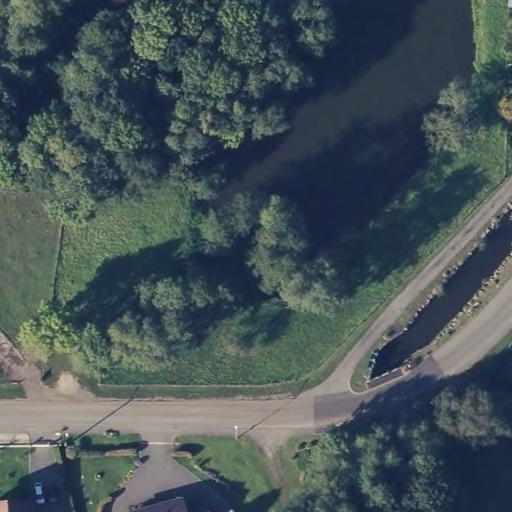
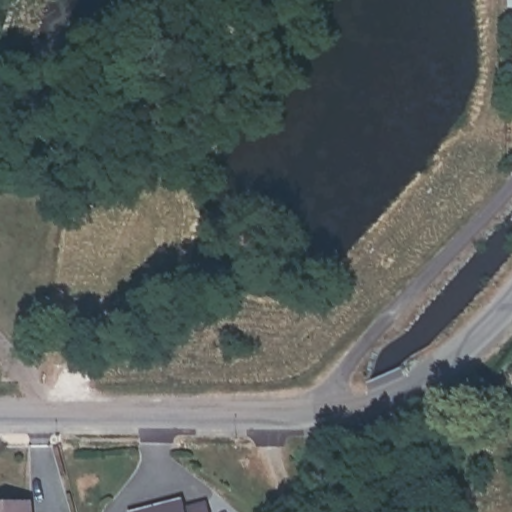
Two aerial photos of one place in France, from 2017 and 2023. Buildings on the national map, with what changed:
unchanged [(185,498),(189,508),(208,503),(211,512),(136,512),(185,498)]
unchanged [(36,508),(36,512),(4,512),(36,508)]

